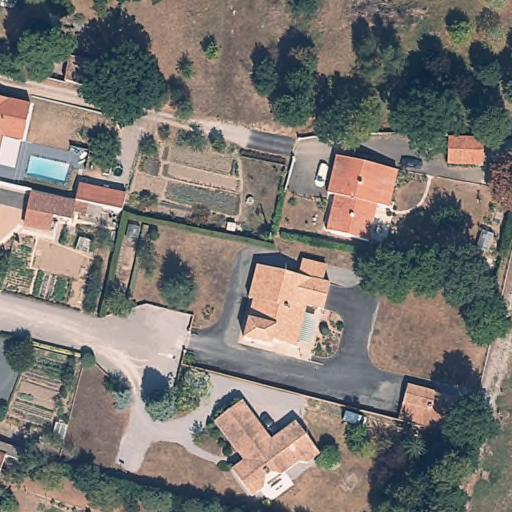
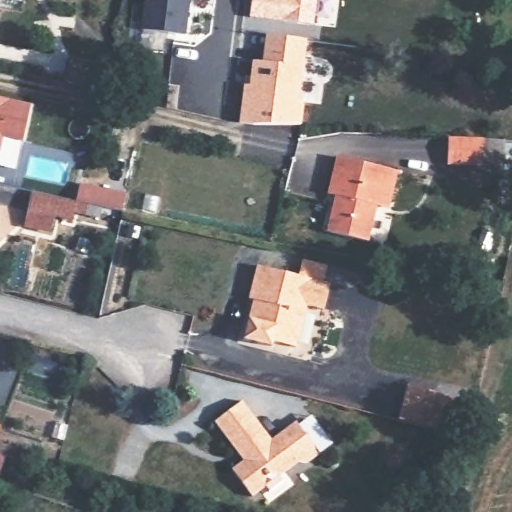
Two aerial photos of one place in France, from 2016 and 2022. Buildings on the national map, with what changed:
unchanged [(0,5),(0,0),(24,0),(23,9),(0,5)]
new [(188,0),(183,40),(139,35),(143,0),(188,0)]
new [(248,16),(251,0),(316,0),(313,23),(248,16)]
new [(242,84),(248,85),(252,60),(264,63),(267,35),(307,40),(300,100),(305,100),(301,125),(237,123),(242,84)]
unchanged [(61,64),(88,70),(85,85),(58,79),(61,64)]
unchanged [(23,142),(2,137),(0,149),(0,98),(31,105),(23,142)]
unchanged [(496,139),(496,165),(461,166),(461,139),(496,139)]
unchanged [(335,198),(329,197),(335,161),(397,173),(390,209),(378,207),(370,245),(329,237),(335,198)]
unchanged [(26,228),(29,213),(33,194),(71,202),(69,212),(60,210),(58,219),(51,218),(49,232),(26,228)]
unchanged [(256,302),(251,300),(259,268),(331,288),(323,314),(306,309),(296,344),(276,339),(273,344),(246,337),(256,302)]
unchanged [(411,406),(416,388),(445,395),(443,399),(466,404),(456,437),(434,431),(406,423),(411,406)]
unchanged [(243,464),(215,424),(241,406),(270,446),(296,428),(319,460),(306,469),(297,469),(281,479),(267,480),(265,490),(251,501),(232,474),(243,464)]
unchanged [(0,456),(7,459),(0,479),(0,456)]

